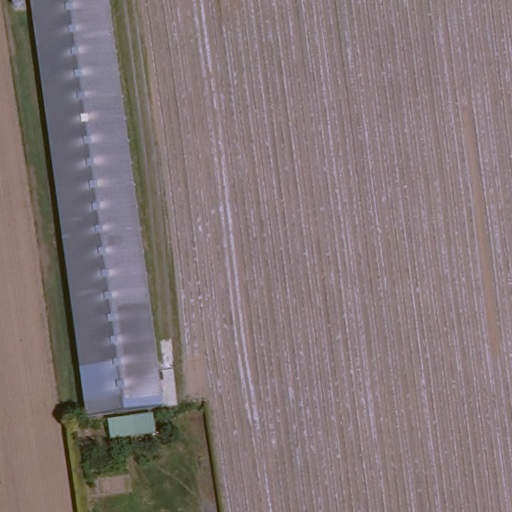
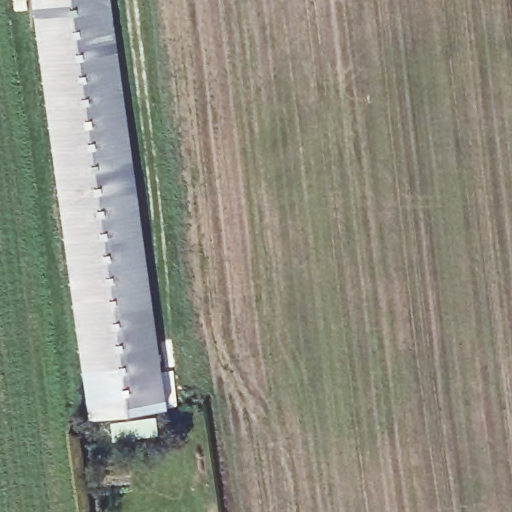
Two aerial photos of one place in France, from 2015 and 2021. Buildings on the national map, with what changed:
unchanged [(89,420),(28,0),(103,0),(161,410),(89,420)]

